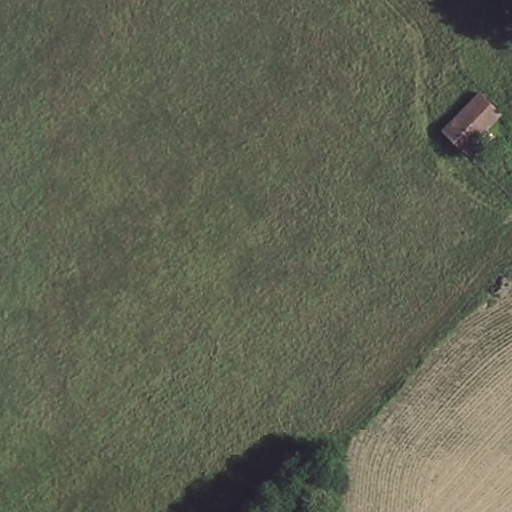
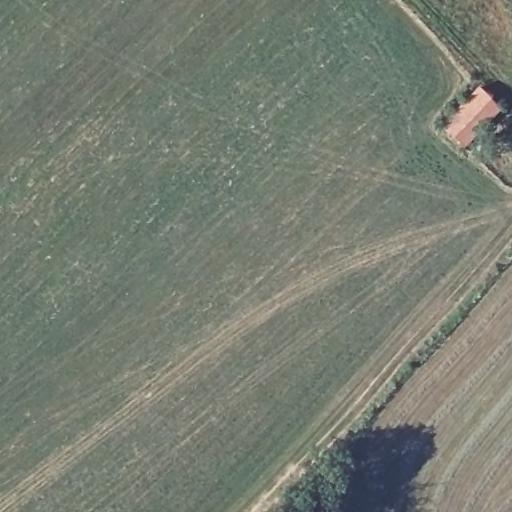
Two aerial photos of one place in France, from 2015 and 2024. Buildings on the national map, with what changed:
unchanged [(495,101),(461,142),(437,122),(471,81),(495,101)]

